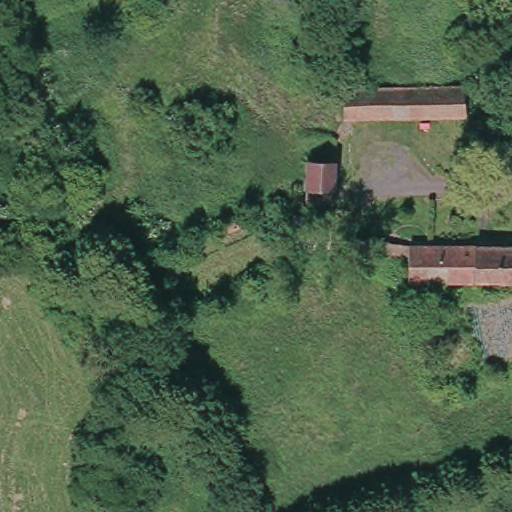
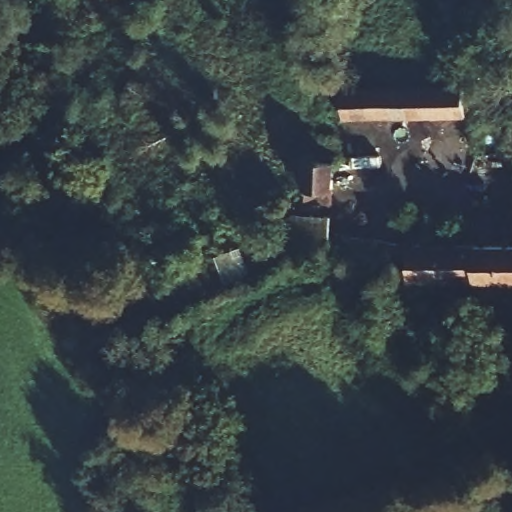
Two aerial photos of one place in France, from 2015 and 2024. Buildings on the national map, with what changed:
unchanged [(341,91),(400,88),(460,85),(460,113),(342,117),(341,91)]
unchanged [(310,202),(314,175),(319,138),(344,141),(335,206),(314,203),(310,202)]
unchanged [(300,225),(301,216),(323,220),(317,249),(293,257),(300,225)]
unchanged [(401,248),(512,248),(512,285),(497,285),(409,286),(409,277),(398,276),(398,263),(343,259),(337,258),(340,242),(401,248)]

